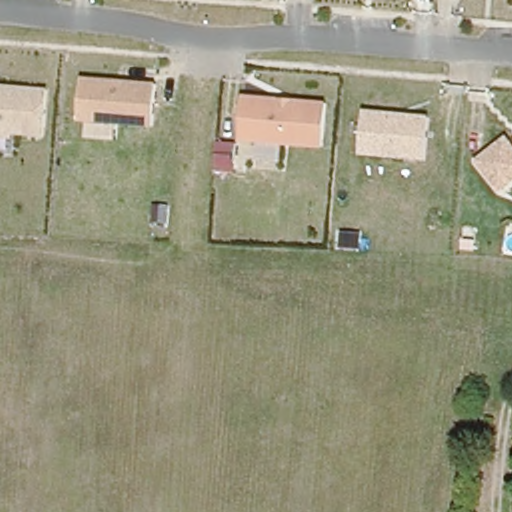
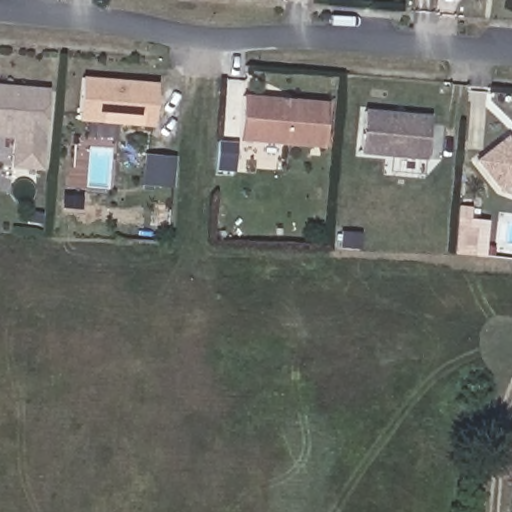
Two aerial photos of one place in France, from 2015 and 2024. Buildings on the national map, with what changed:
unchanged [(84,77),(156,84),(152,127),(79,121),(84,77)]
unchanged [(45,137),(14,135),(14,140),(0,139),(0,84),(48,87),(45,137)]
unchanged [(245,95),(326,101),(322,147),(242,141),(245,95)]
unchanged [(426,162),(360,155),(364,110),(430,115),(426,162)]
unchanged [(508,138),(512,143),(512,184),(501,192),(475,160),(508,138)]
unchanged [(239,142),(237,172),(215,171),(216,140),(239,142)]
new [(147,156),(175,159),(174,187),(145,185),(147,156)]

